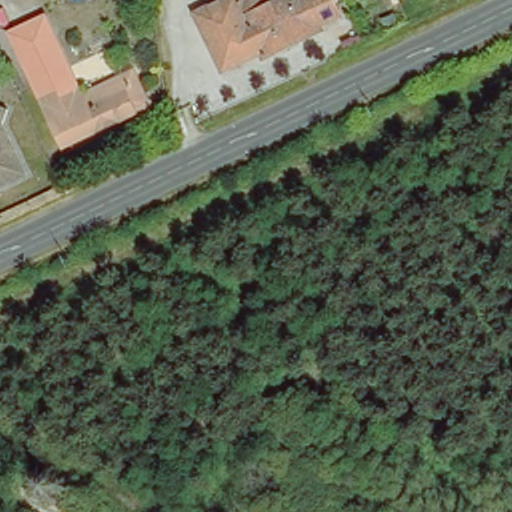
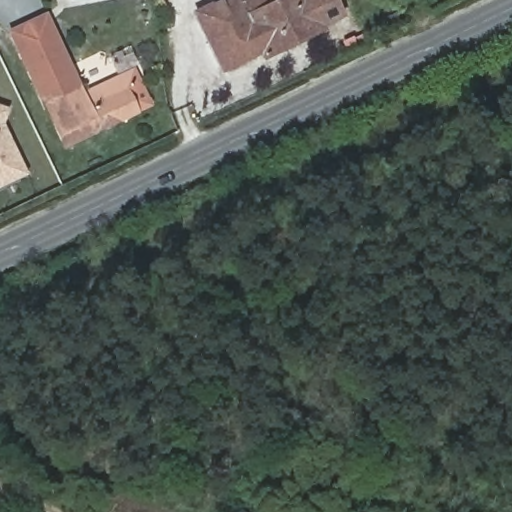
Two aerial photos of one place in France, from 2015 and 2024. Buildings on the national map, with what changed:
unchanged [(337,15),(317,23),(321,30),(289,44),(265,54),(262,47),(223,64),(220,66),(194,6),(201,3),(208,0),(236,0),(237,1),(240,0),(331,0),(337,15)]
unchanged [(46,12),(82,90),(78,91),(71,94),(62,73),(34,86),(29,88),(7,31),(46,12)]
unchanged [(89,133),(60,146),(56,148),(53,140),(29,88),(34,86),(62,73),(71,94),(89,133)]
unchanged [(82,90),(95,84),(97,83),(101,91),(114,85),(132,77),(145,107),(127,116),(89,133),(71,94),(78,91),(82,90)]
unchanged [(6,131),(29,183),(0,196),(0,112),(11,117),(6,131)]

